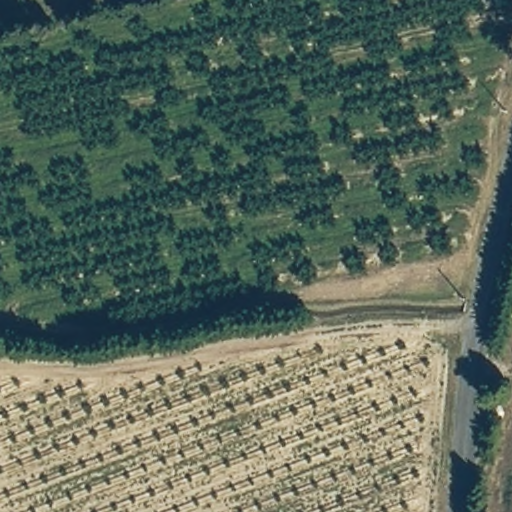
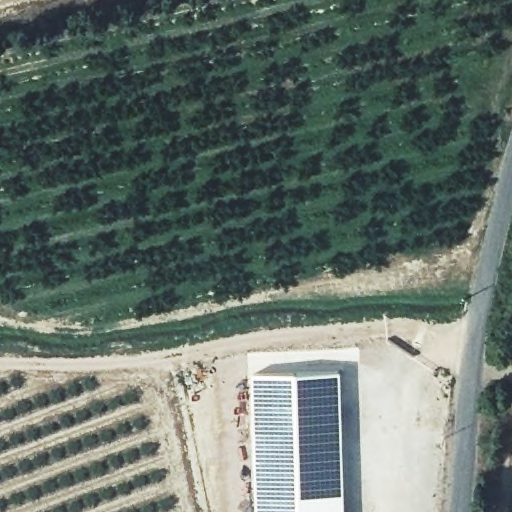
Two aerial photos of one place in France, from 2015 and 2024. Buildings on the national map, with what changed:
new [(257,512),(254,372),(342,370),(346,512),(257,512)]

